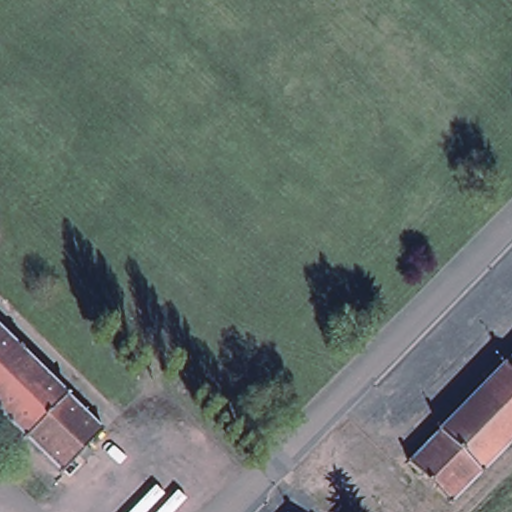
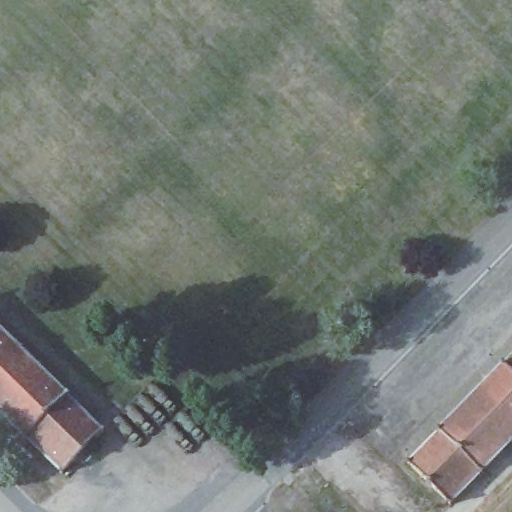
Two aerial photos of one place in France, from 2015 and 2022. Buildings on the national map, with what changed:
unchanged [(68,390),(106,429),(89,446),(95,451),(86,459),(81,454),(61,475),(0,414),(0,325),(68,390)]
unchanged [(409,461),(512,357),(512,442),(452,503),(409,461)]

